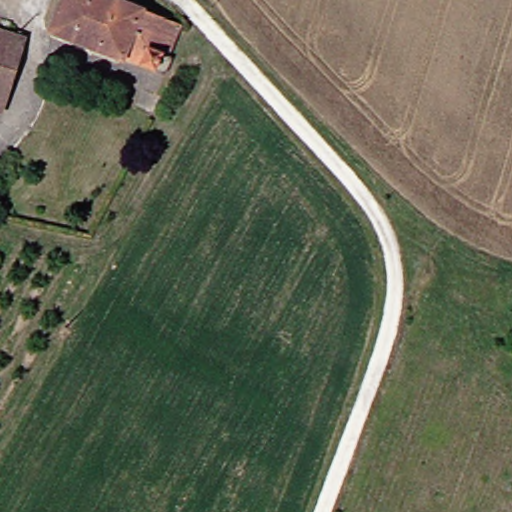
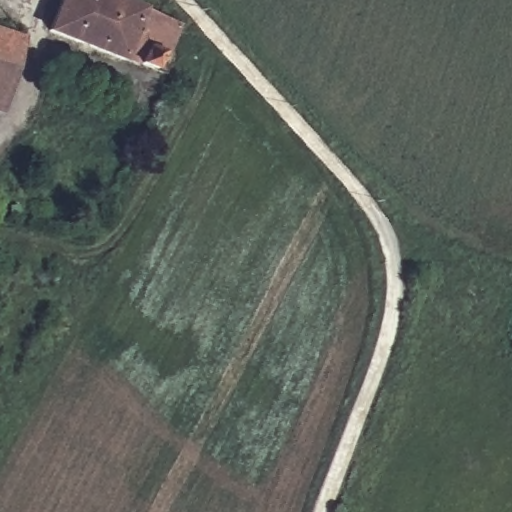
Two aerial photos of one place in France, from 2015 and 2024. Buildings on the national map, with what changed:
unchanged [(157,56),(161,58),(155,73),(113,57),(112,59),(39,31),(51,0),(105,0),(169,24),(157,56)]
unchanged [(0,102),(0,31),(20,38),(0,102)]
unchanged [(510,351),(512,347),(512,351),(510,351)]

